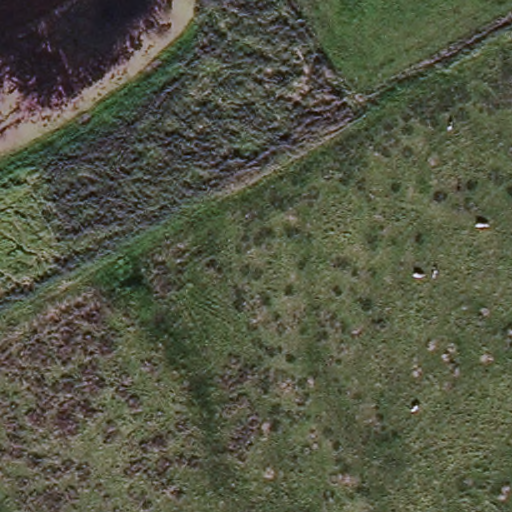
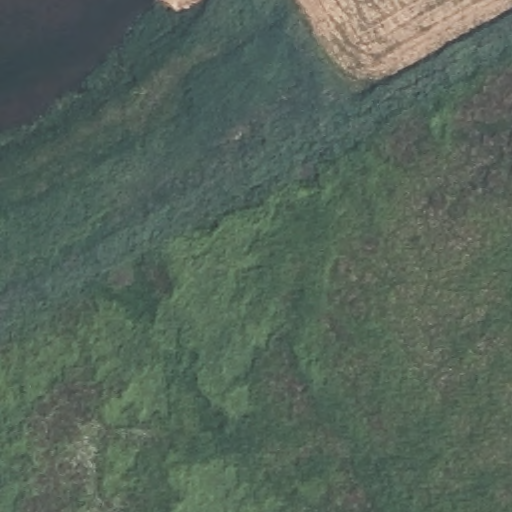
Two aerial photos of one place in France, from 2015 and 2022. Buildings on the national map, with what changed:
[]

